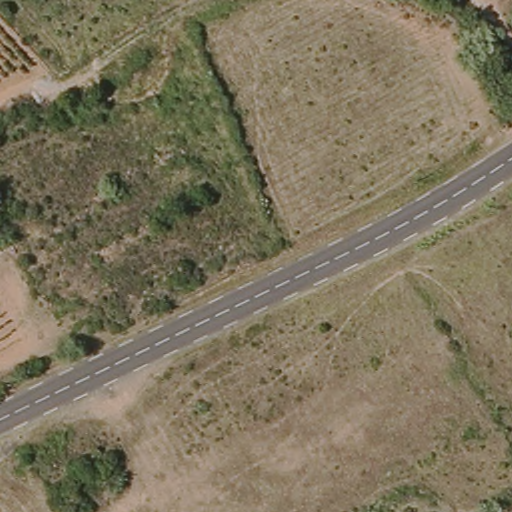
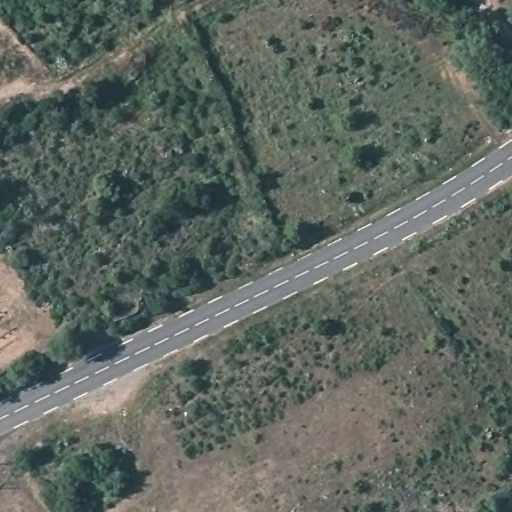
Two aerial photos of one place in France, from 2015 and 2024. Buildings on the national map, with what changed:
[]

